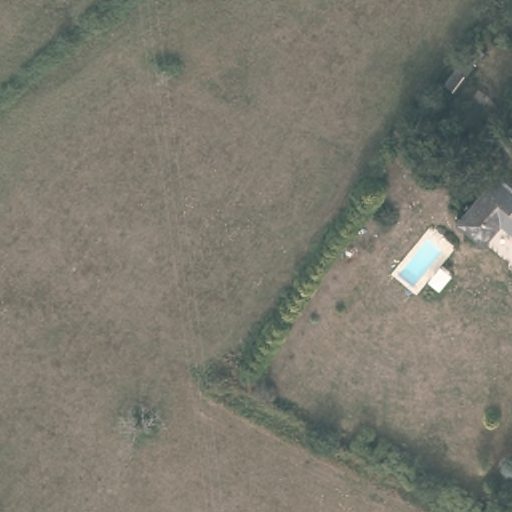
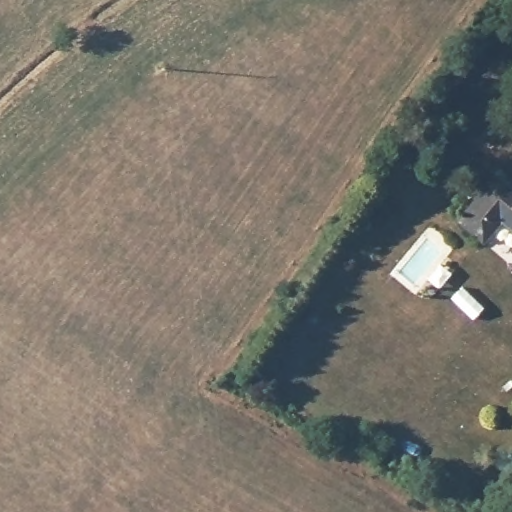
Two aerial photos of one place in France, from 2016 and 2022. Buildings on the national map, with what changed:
unchanged [(477,112),(461,135),(442,119),(460,99),(477,112)]
unchanged [(512,186),(512,233),(502,225),(485,246),(457,222),(497,174),(512,186)]

